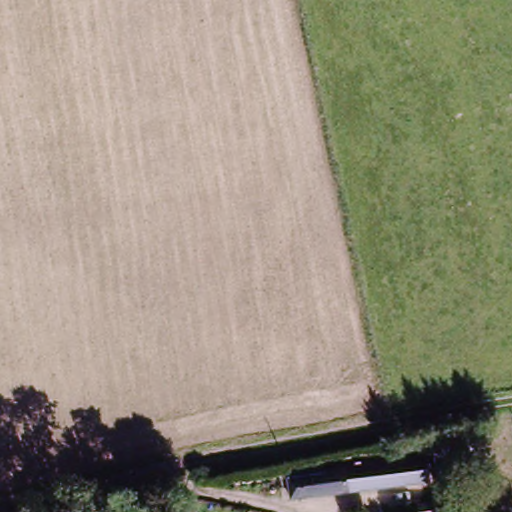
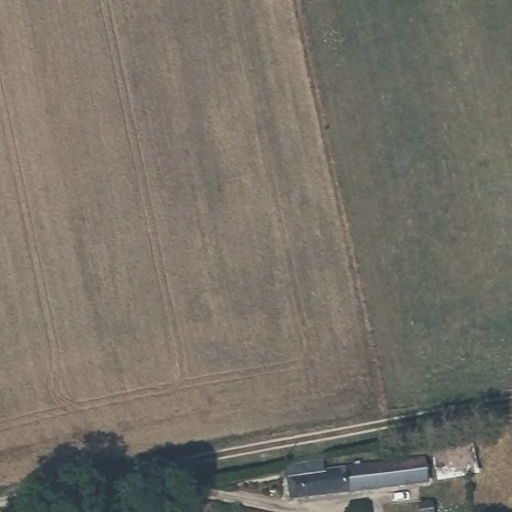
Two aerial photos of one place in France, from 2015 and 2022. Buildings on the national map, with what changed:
unchanged [(268,472),(298,469),(299,479),(405,471),(407,493),(327,499),(270,504),(268,472)]

